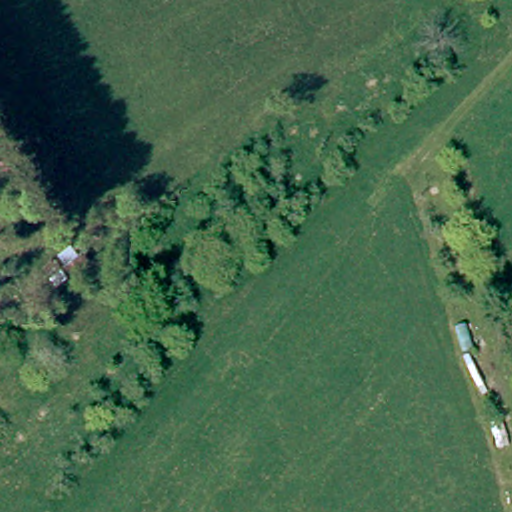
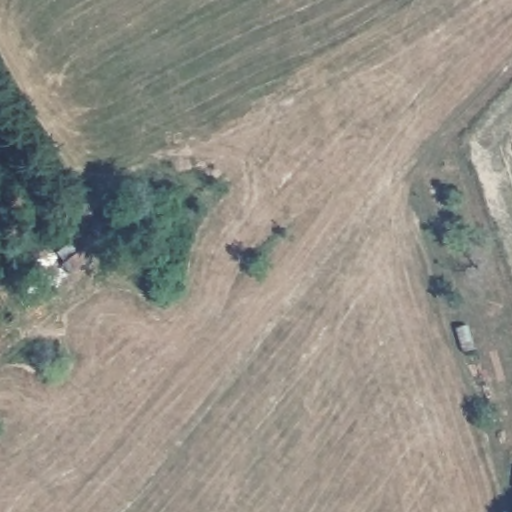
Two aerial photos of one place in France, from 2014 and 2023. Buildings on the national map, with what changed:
unchanged [(77,268),(66,277),(57,267),(69,258),(77,268)]

